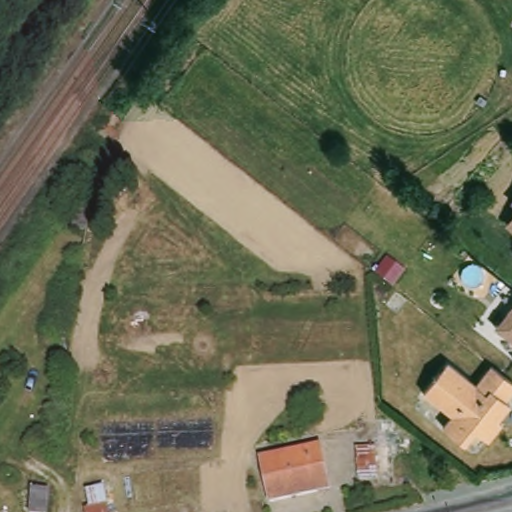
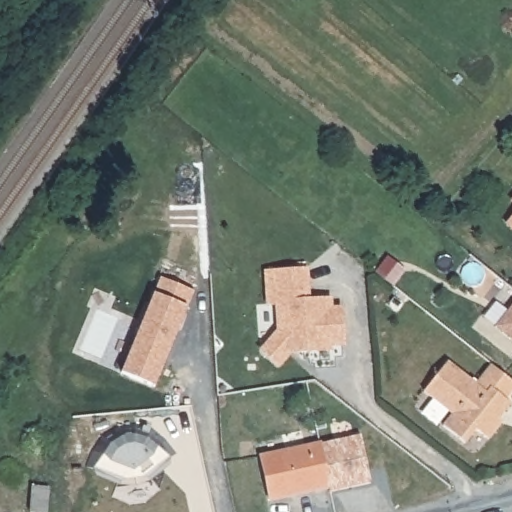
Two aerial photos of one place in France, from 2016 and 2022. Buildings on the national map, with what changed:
unchanged [(512,200),(512,201),(511,200),(512,200)]
unchanged [(512,220),(512,233),(505,228),(512,220)]
new [(282,371),(265,355),(282,336),(281,309),(272,309),(270,276),(311,274),(313,306),(335,305),(335,315),(346,314),(347,350),(333,351),(333,356),(302,357),(294,358),(282,371)]
new [(135,337),(141,339),(144,333),(138,331),(161,281),(193,295),(171,345),(165,343),(163,349),(168,352),(151,389),(118,375),(135,337)]
unchanged [(512,309),(512,345),(495,331),(512,309)]
unchanged [(512,405),(498,422),(502,425),(488,443),(474,432),(463,445),(442,428),(452,415),(423,392),(446,363),(475,386),(492,365),(512,381),(512,395),(507,401),(512,405)]
demolished [(396,457),(393,464),(391,476),(377,477),(378,483),(356,484),(355,448),(374,444),(374,423),(394,422),(396,457)]
unchanged [(327,492),(271,503),(262,457),(319,446),(327,492)]
unchanged [(83,512),(83,508),(87,505),(83,483),(102,479),(108,512),(83,512)]
unchanged [(42,485),(41,501),(41,512),(26,512),(26,509),(25,487),(42,485)]

